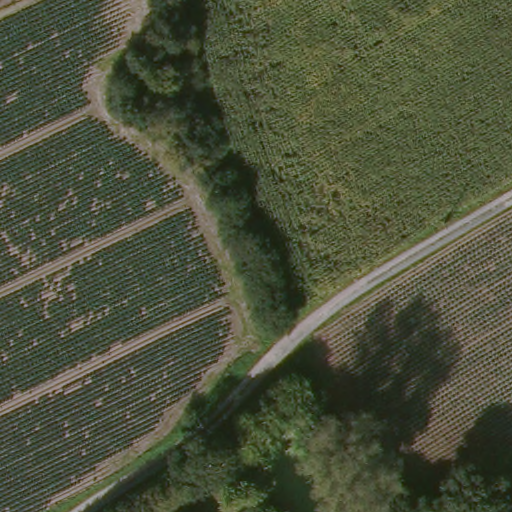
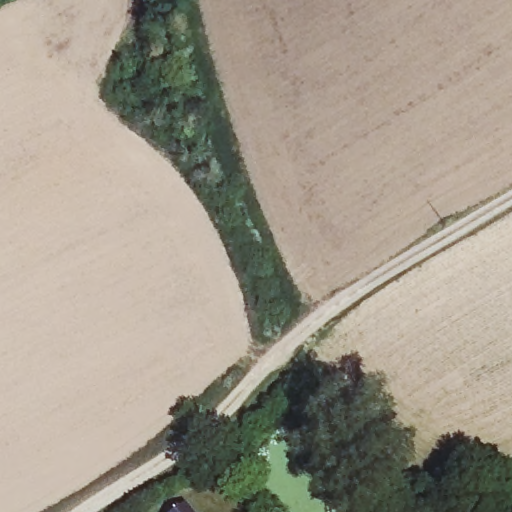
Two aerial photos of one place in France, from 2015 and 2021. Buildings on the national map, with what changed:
unchanged [(172,511),(176,510),(179,512),(171,512),(172,511)]
unchanged [(190,511),(191,512),(189,512),(190,511)]

